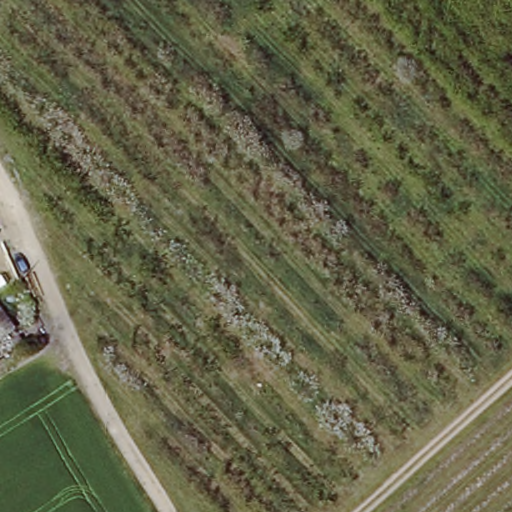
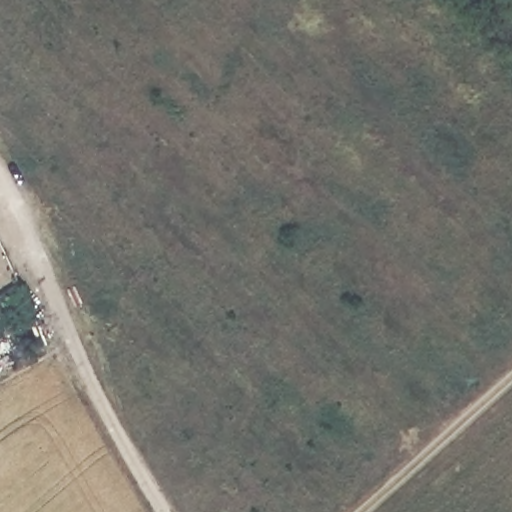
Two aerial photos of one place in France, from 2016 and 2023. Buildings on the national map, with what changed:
unchanged [(0,343),(0,320),(10,335),(0,343)]

